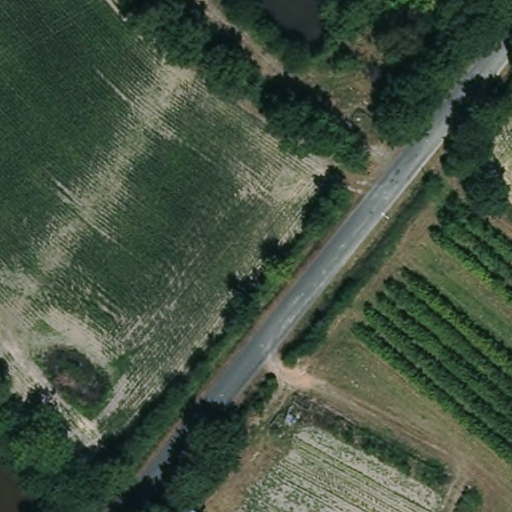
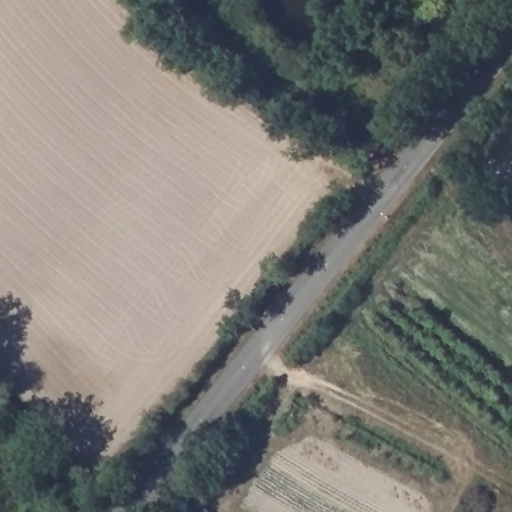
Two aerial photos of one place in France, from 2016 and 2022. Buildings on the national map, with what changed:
unchanged [(200,512),(178,512),(185,502),(200,512)]

